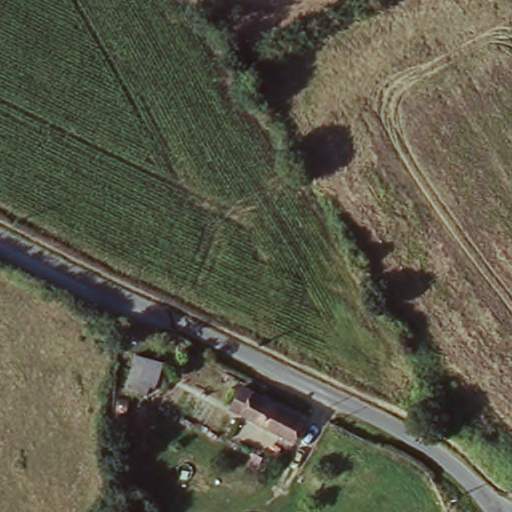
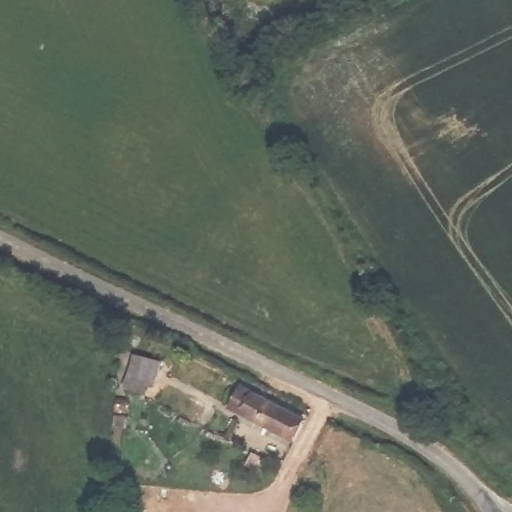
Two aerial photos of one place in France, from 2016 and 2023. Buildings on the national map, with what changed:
unchanged [(151,355),(140,376),(150,383),(144,395),(119,384),(138,348),(151,355)]
unchanged [(235,415),(246,394),(300,423),(288,442),(235,415)]

